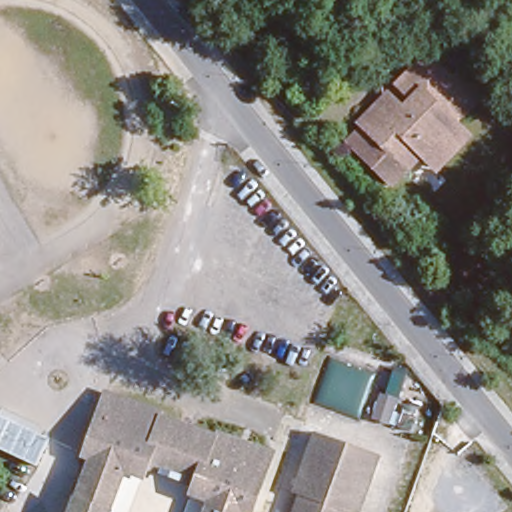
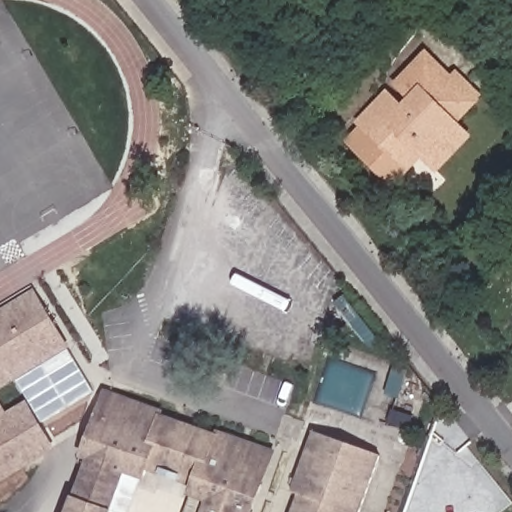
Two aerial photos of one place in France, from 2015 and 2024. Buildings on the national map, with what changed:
unchanged [(438,176),(423,163),(394,193),(345,143),(360,128),(356,124),(389,93),(402,105),(407,101),(390,83),(423,47),(455,77),(460,73),(485,100),(462,127),(476,139),(438,176)]
new [(69,349),(0,390),(0,309),(34,289),(69,349)]
new [(69,349),(94,391),(43,422),(17,380),(69,349)]
unchanged [(170,415),(168,418),(220,441),(221,437),(276,461),(255,512),(210,512),(213,504),(195,497),(199,487),(150,466),(147,475),(128,467),(110,511),(111,511),(111,512),(72,512),(96,453),(89,450),(116,391),(170,415)]
new [(28,401),(55,449),(0,483),(0,402),(6,413),(28,401)]
unchanged [(292,512),(298,497),(292,494),(313,433),(379,460),(361,512),(292,512)]

